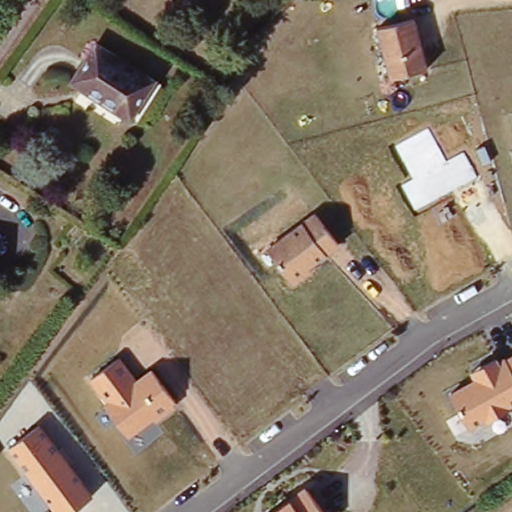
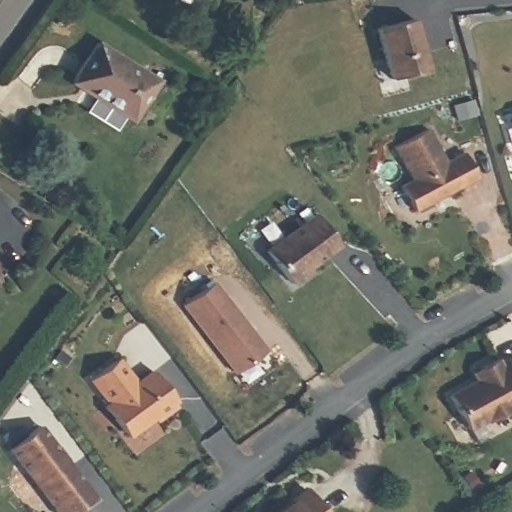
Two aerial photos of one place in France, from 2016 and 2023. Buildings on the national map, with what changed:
unchanged [(413,17),(426,67),(388,77),(376,27),(413,17)]
unchanged [(155,89),(127,124),(74,85),(101,47),(155,89)]
unchanged [(402,186),(412,179),(395,147),(429,129),(446,162),(464,152),(477,177),(415,211),(402,186)]
unchanged [(340,246),(292,285),(265,249),(314,211),(340,246)]
new [(215,277),(265,347),(234,373),(183,305),(215,277)]
unchanged [(0,287),(0,282),(2,286),(0,287)]
unchanged [(104,405),(107,402),(88,380),(120,357),(136,378),(151,369),(176,402),(129,437),(104,405)]
unchanged [(469,428),(449,393),(474,378),(471,372),(498,358),(500,361),(505,357),(507,360),(512,357),(512,406),(469,428)]
unchanged [(7,448),(39,425),(94,496),(72,512),(56,512),(7,448)]
unchanged [(289,501),(306,488),(325,512),(275,512),(289,501)]

